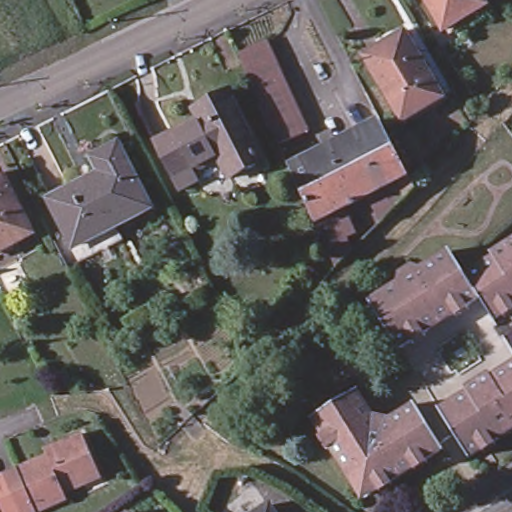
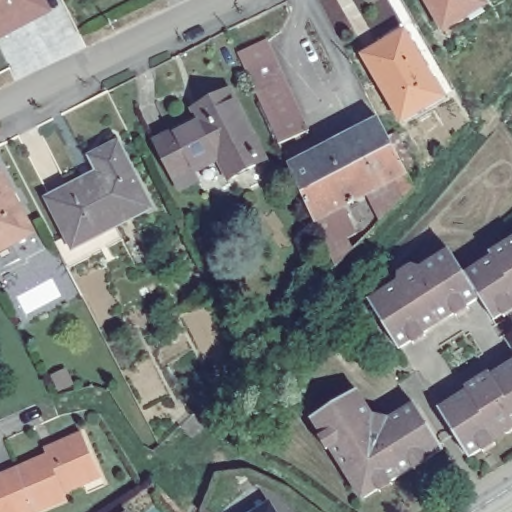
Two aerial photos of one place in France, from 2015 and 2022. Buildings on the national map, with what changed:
new [(0,0),(46,0),(52,13),(0,38),(0,0)]
unchanged [(483,5),(439,30),(421,0),(480,0),(483,5)]
unchanged [(442,102),(399,123),(362,57),(404,34),(442,102)]
unchanged [(246,82),(241,70),(234,55),(243,50),(267,39),(274,54),(281,70),(288,86),(294,101),(301,116),(308,132),(286,142),(276,146),(273,139),(269,131),(262,116),(255,101),(250,90),(248,85),(246,82)]
unchanged [(196,184),(178,193),(154,146),(205,120),(199,106),(228,93),(261,156),(251,161),(254,168),(229,181),(218,159),(190,173),(196,184)]
unchanged [(377,220),(369,199),(346,211),(361,244),(329,262),(311,222),(286,169),(296,165),(378,124),(406,177),(414,195),(377,220)]
unchanged [(46,192),(82,174),(83,176),(98,167),(90,150),(116,137),(146,200),(113,218),(111,213),(68,234),(65,227),(46,192)]
unchanged [(35,237),(0,256),(0,178),(3,176),(35,237)]
unchanged [(65,227),(68,234),(111,213),(113,218),(120,233),(66,261),(52,234),(65,227)]
unchanged [(395,349),(364,302),(400,278),(399,276),(403,272),(411,272),(444,250),(461,273),(512,242),(512,304),(489,318),(476,298),(395,349)]
unchanged [(470,461),(441,414),(512,369),(512,430),(512,437),(509,438),(504,440),(500,437),(497,439),(499,443),(495,446),(477,457),(470,461)]
unchanged [(313,423),(356,397),(372,423),(381,423),(388,426),(416,410),(444,453),(364,503),(313,423)]
unchanged [(63,499),(66,504),(46,512),(19,512),(6,483),(19,477),(18,473),(55,457),(53,452),(83,440),(98,476),(101,485),(84,490),(63,499)]
unchanged [(19,512),(0,512),(0,485),(6,483),(19,512)]

